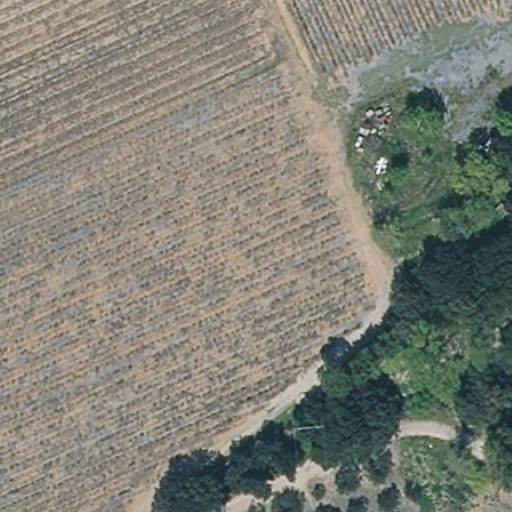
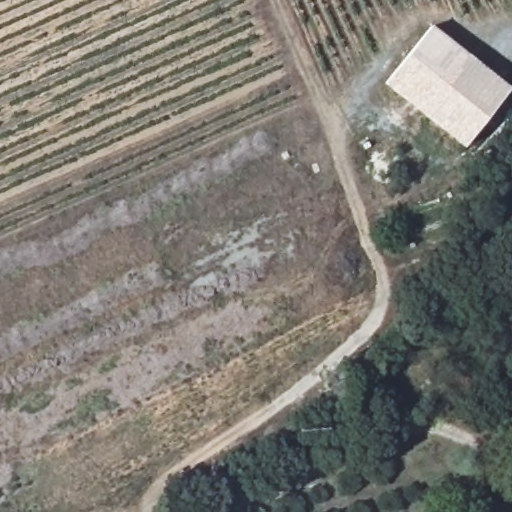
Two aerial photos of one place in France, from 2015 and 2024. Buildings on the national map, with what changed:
new [(464,147),(385,85),(432,25),(511,88),(464,147)]

